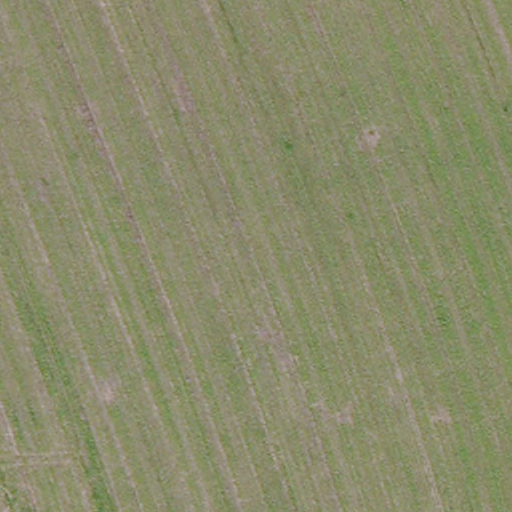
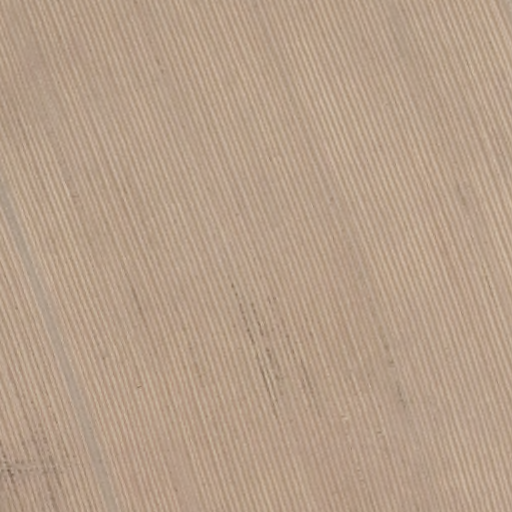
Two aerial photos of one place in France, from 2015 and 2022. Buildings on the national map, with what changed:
[]

